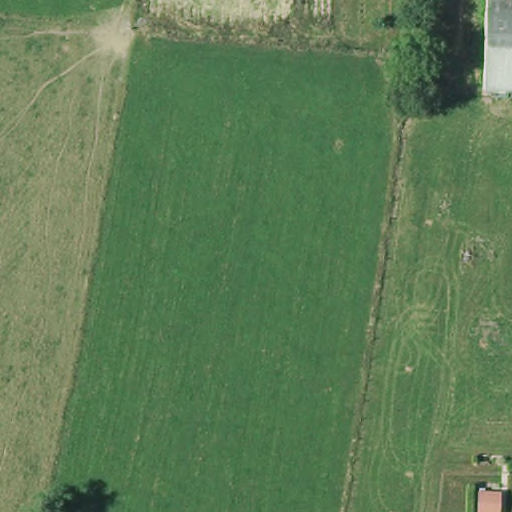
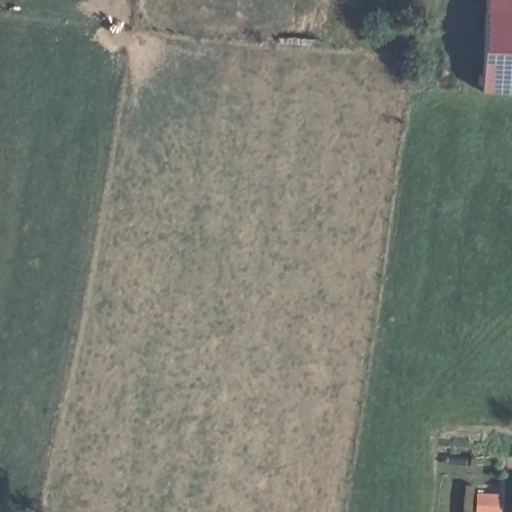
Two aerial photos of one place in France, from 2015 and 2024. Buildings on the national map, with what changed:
unchanged [(481,0),(512,0),(512,91),(478,90),(481,0)]
unchanged [(500,494),(500,512),(478,512),(478,493),(500,494)]

